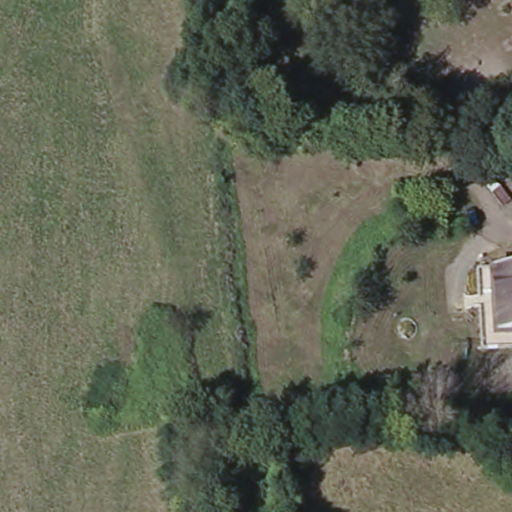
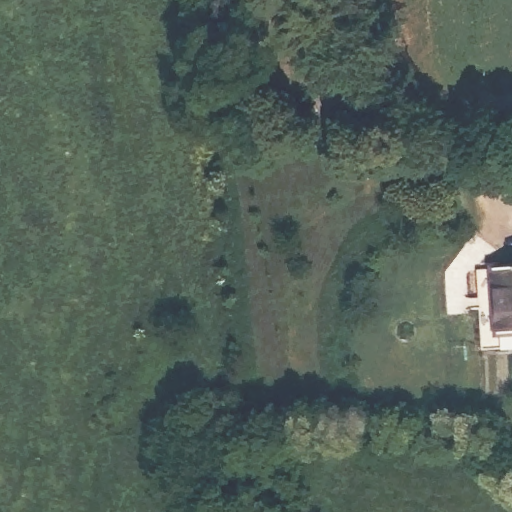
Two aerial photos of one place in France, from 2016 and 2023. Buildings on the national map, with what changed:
unchanged [(512,254),(512,335),(483,337),(477,257),(512,254)]

